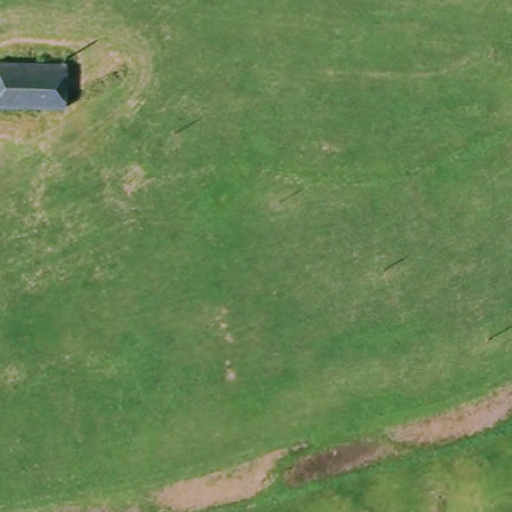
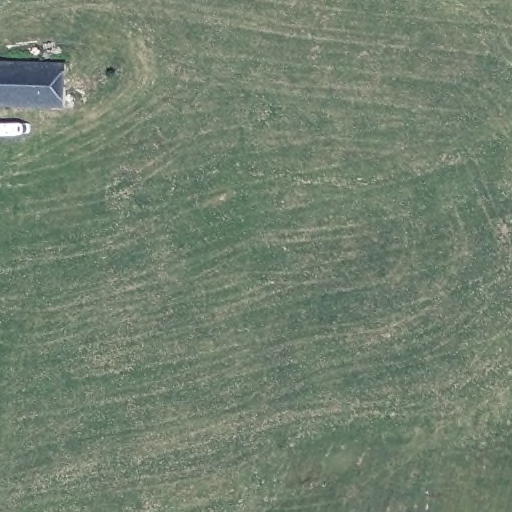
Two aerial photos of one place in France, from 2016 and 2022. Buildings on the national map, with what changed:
unchanged [(2,110),(3,66),(73,70),(72,113),(2,110)]

